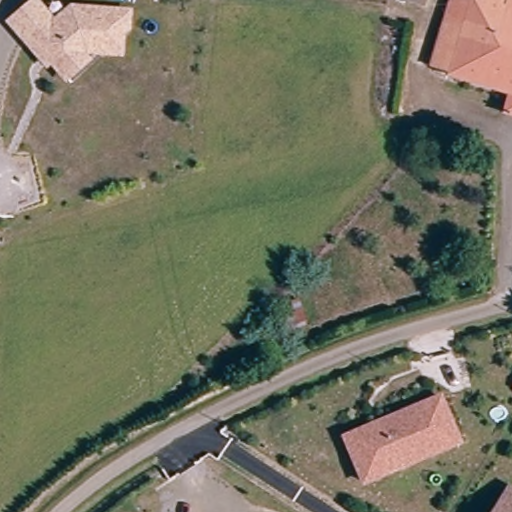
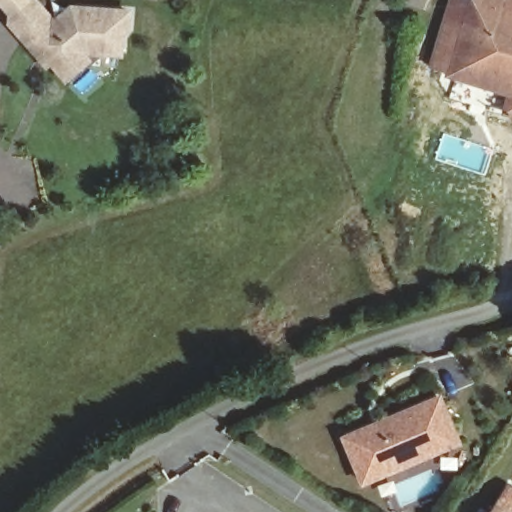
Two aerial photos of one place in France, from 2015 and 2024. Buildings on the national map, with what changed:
unchanged [(50,51),(45,55),(22,29),(12,18),(0,3),(0,0),(38,0),(56,21),(76,4),(134,9),(132,27),(132,32),(130,52),(92,49),(98,55),(72,77),(66,70),(50,51)]
unchanged [(425,0),(422,8),(401,0),(425,0)]
unchanged [(446,23),(466,28),(474,0),(512,0),(512,95),(432,74),(446,23)]
unchanged [(512,95),(512,119),(506,117),(512,95)]
unchanged [(365,483),(345,438),(442,396),(462,441),(442,449),(402,467),(365,483)]
unchanged [(506,489),(512,493),(512,512),(491,512),(506,489)]

